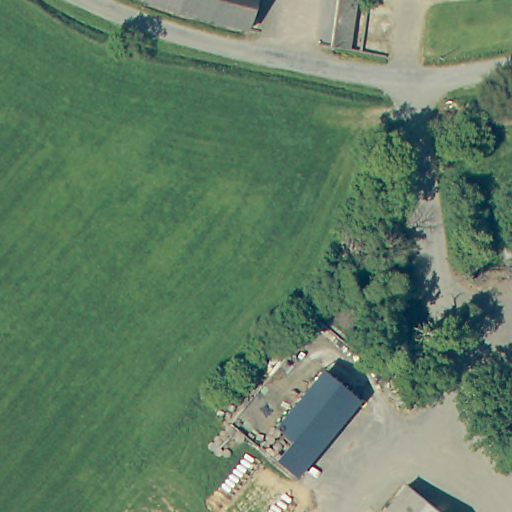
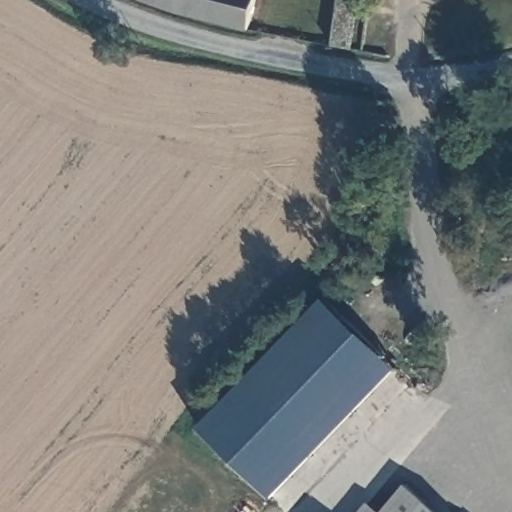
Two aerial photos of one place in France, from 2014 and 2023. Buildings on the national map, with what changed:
unchanged [(246,26),(156,0),(253,0),(246,26)]
unchanged [(350,45),(330,42),(336,0),(356,0),(350,45)]
new [(324,299),(397,370),(272,498),(199,427),(324,299)]
new [(410,485),(386,512),(381,512),(405,484),(410,485)]
unchanged [(386,512),(410,485),(430,501),(420,512),(386,512)]
unchanged [(442,512),(420,512),(430,501),(442,512)]
new [(379,512),(355,512),(367,502),(379,512)]

